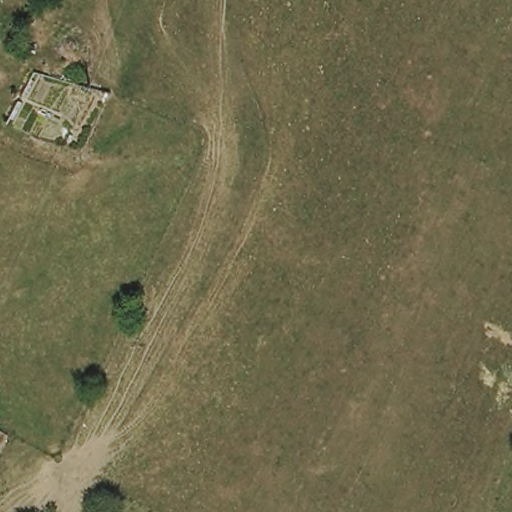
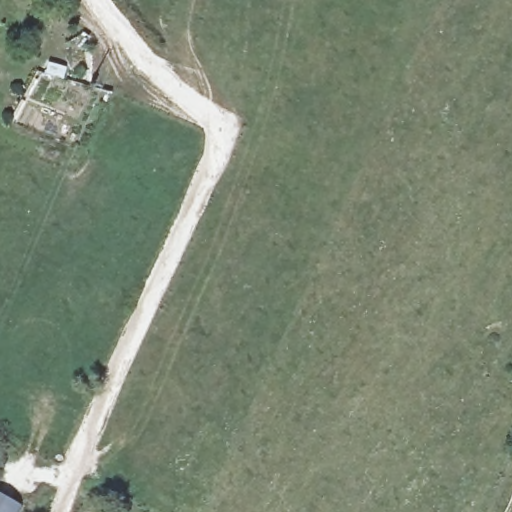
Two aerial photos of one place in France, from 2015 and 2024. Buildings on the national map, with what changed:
new [(17,512),(0,512),(0,493),(20,506),(17,512)]

